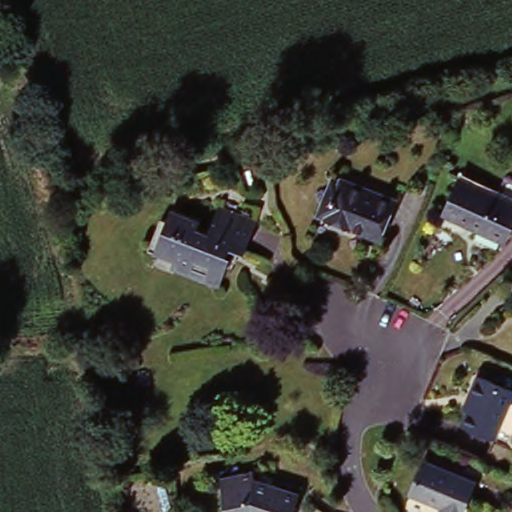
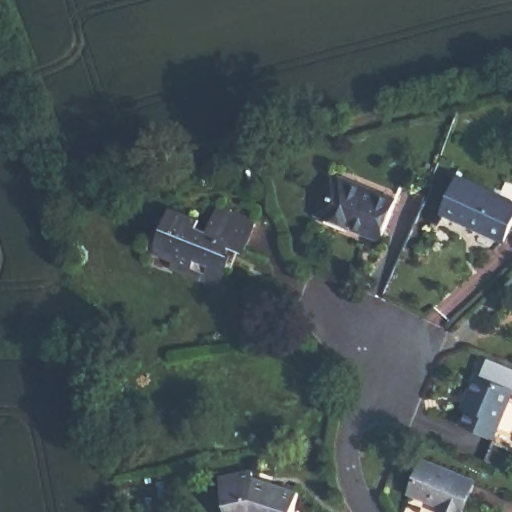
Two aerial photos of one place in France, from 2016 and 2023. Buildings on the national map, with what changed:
unchanged [(381,239),(340,222),(332,219),(346,182),(354,185),(356,181),(411,203),(398,235),(395,244),(381,239)]
unchanged [(449,217),(465,182),(505,201),(512,187),(512,241),(510,245),(449,217)]
unchanged [(226,265),(218,284),(171,265),(174,258),(148,248),(160,216),(166,218),(172,207),(200,218),(197,225),(207,230),(218,205),(256,220),(243,251),(238,248),(230,267),(226,265)]
unchanged [(469,403),(464,401),(470,388),(478,369),(512,384),(512,386),(494,430),(463,418),(469,403)]
unchanged [(492,435),(506,441),(509,434),(512,436),(512,458),(508,467),(483,457),(492,435)]
unchanged [(461,512),(441,512),(439,511),(442,506),(410,493),(425,458),(474,479),(461,512)]
unchanged [(233,512),(227,485),(225,476),(258,469),(260,477),(272,481),(303,491),(297,512),(233,512)]

